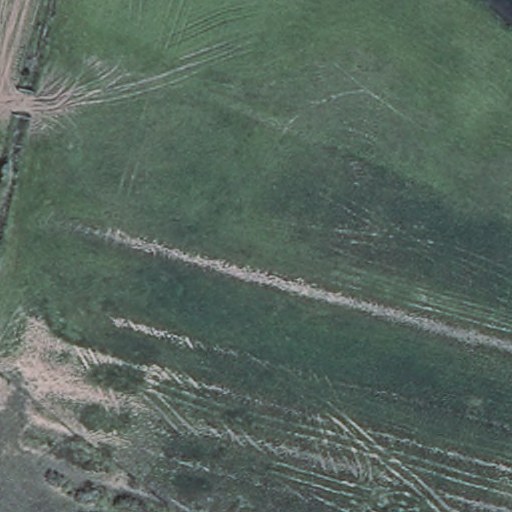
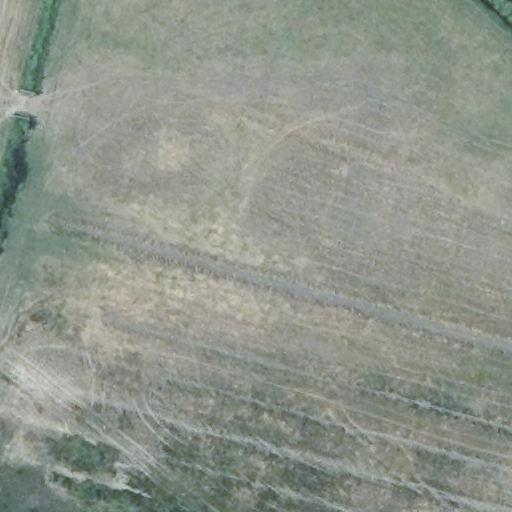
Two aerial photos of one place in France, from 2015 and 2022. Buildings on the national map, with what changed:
[]

